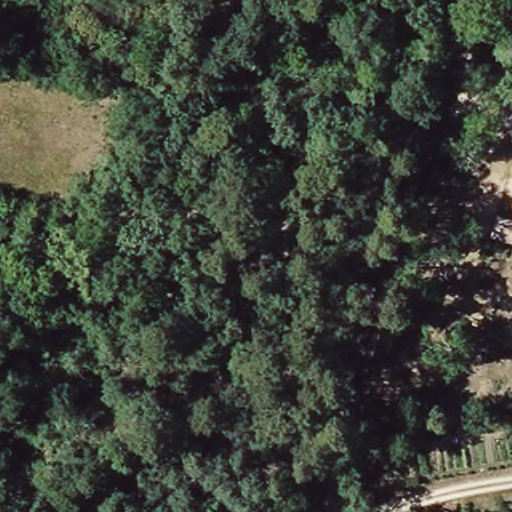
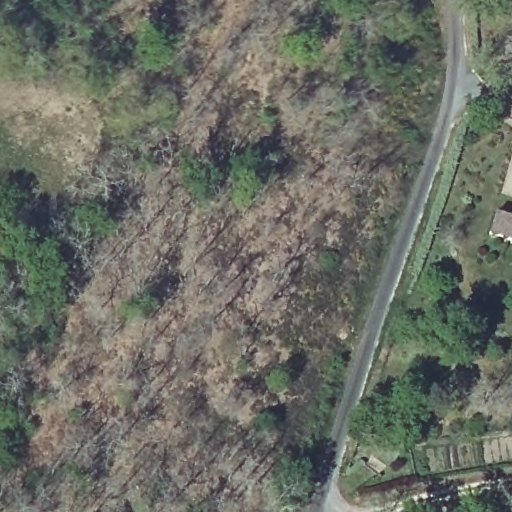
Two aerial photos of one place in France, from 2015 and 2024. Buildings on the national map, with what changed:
unchanged [(493,212),(511,218),(512,214),(512,242),(488,235),(493,212)]

